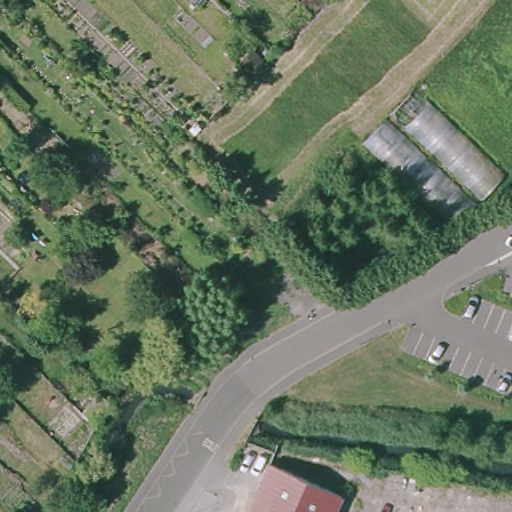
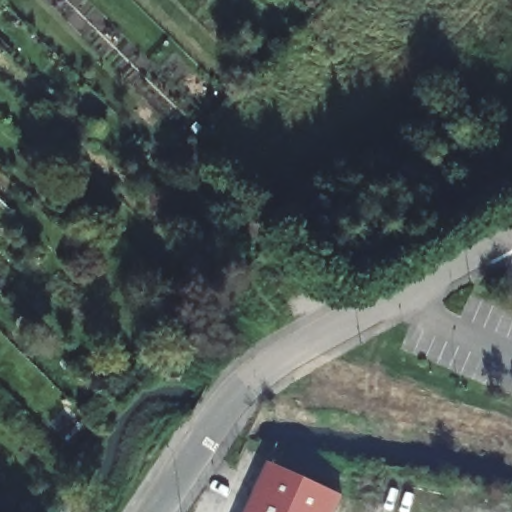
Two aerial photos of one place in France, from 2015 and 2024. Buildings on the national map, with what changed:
demolished [(459,230),(357,145),(405,88),(505,177),(459,230)]
unchanged [(342,495),(334,512),(244,512),(268,459),(342,495)]

